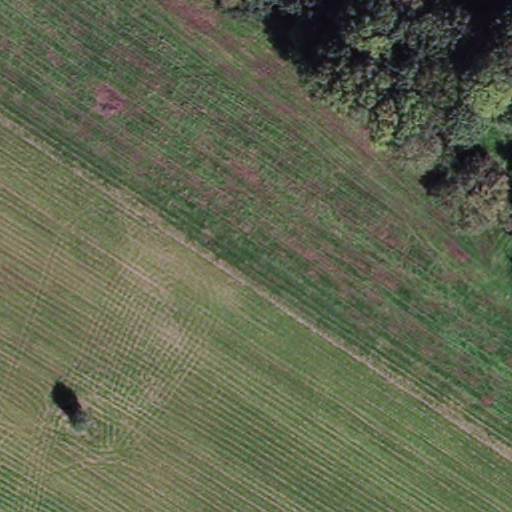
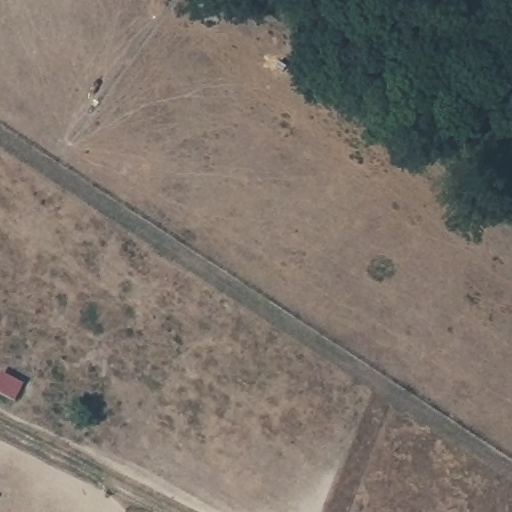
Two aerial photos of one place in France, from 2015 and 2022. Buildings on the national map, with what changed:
unchanged [(420,129),(404,115),(422,93),(438,106),(420,129)]

